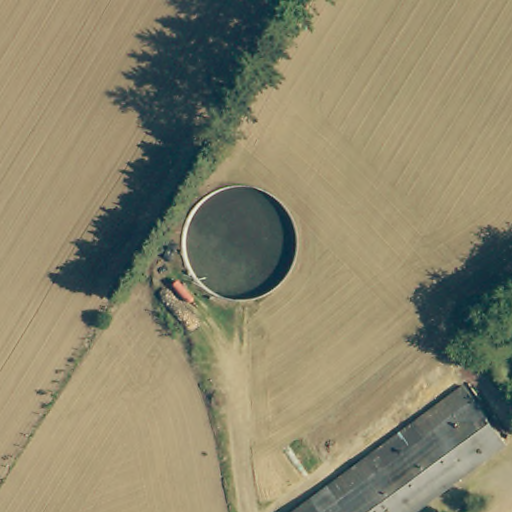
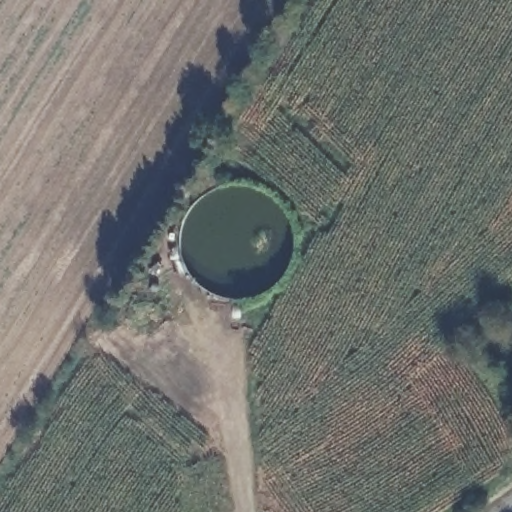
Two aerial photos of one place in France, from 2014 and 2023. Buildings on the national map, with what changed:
demolished [(302,432),(421,341),(442,368),(324,461),(302,432)]
demolished [(408,512),(288,512),(455,388),(498,445),(408,512)]

